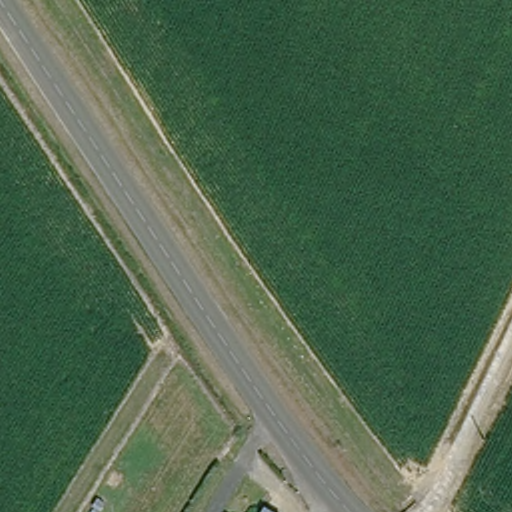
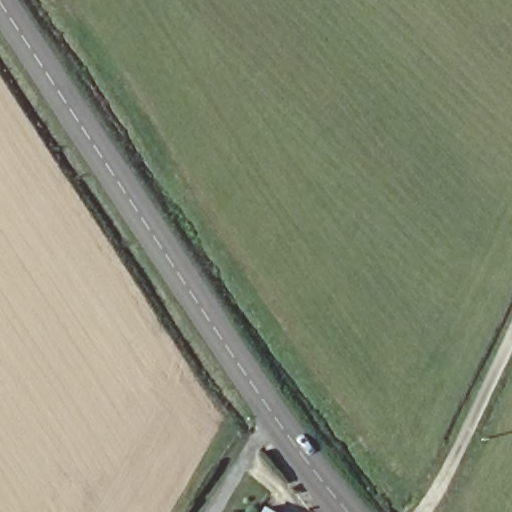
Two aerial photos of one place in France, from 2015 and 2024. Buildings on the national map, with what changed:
unchanged [(269,507),(278,512),(266,512),(269,507)]

